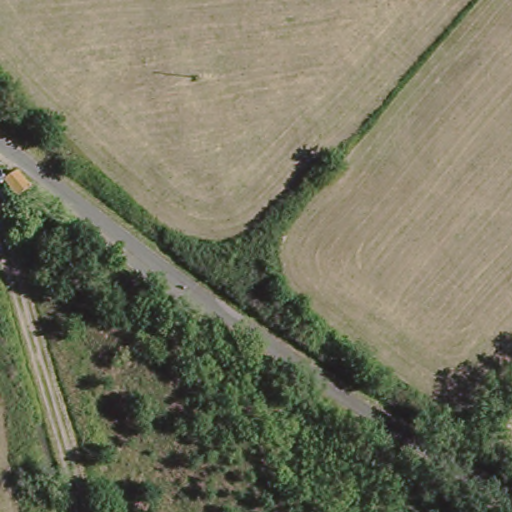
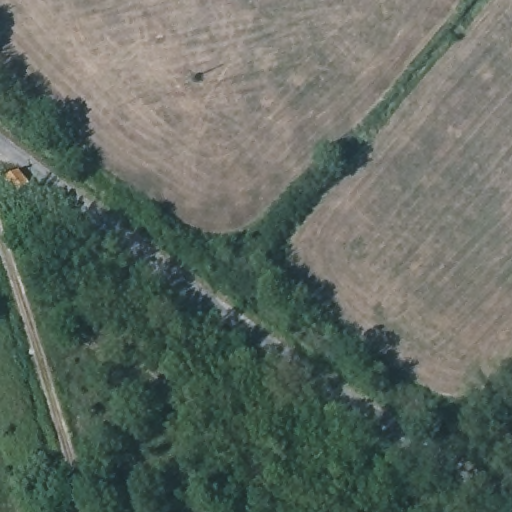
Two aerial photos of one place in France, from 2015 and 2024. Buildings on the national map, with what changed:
unchanged [(13,168),(28,184),(15,194),(1,178),(13,168)]

